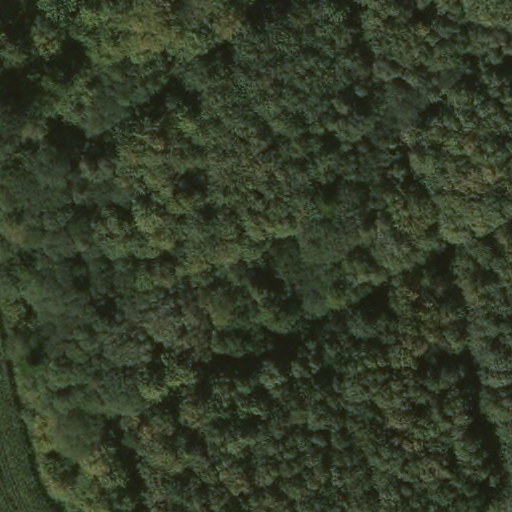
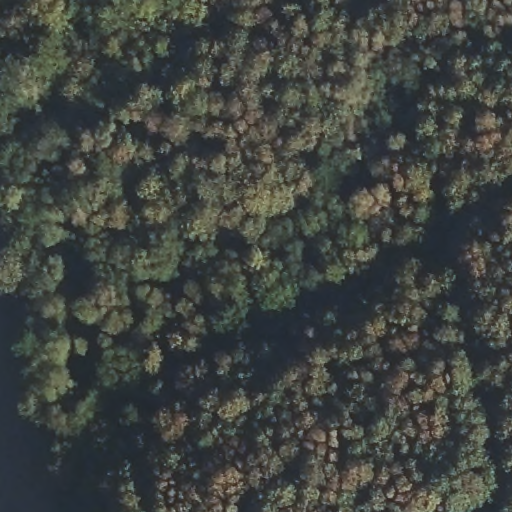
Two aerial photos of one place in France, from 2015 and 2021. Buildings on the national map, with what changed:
[]

